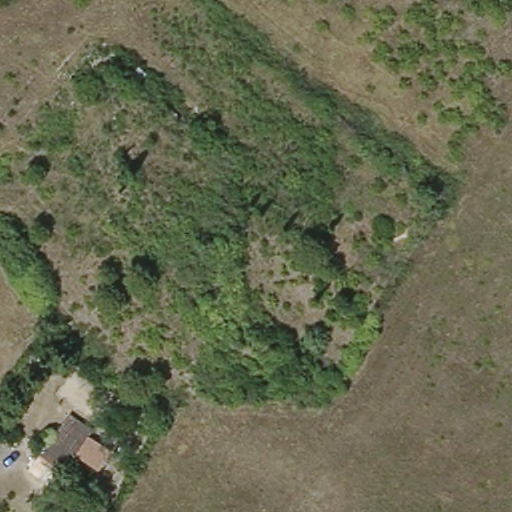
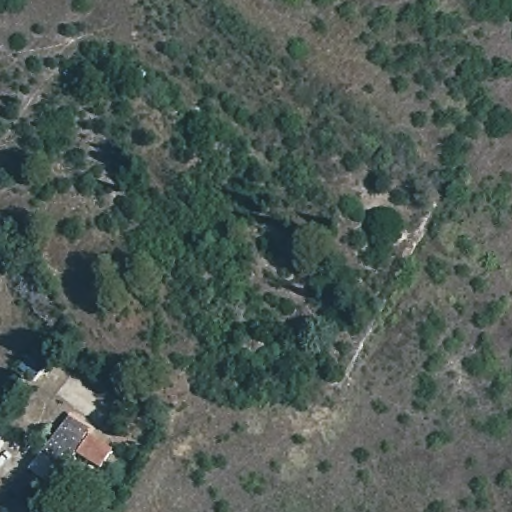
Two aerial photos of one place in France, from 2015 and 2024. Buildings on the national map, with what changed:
unchanged [(112,452),(99,469),(77,453),(59,478),(35,461),(70,413),(93,429),(89,436),(112,452)]

